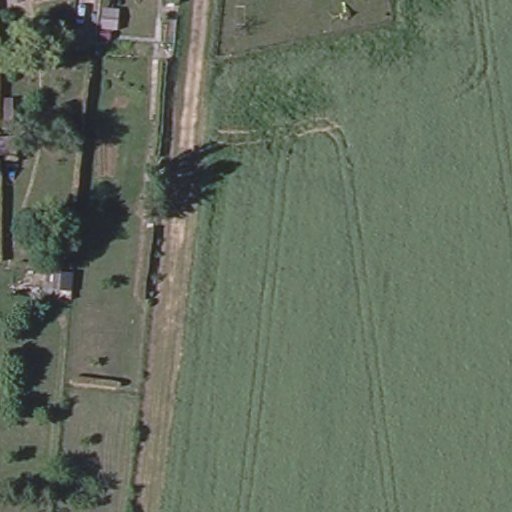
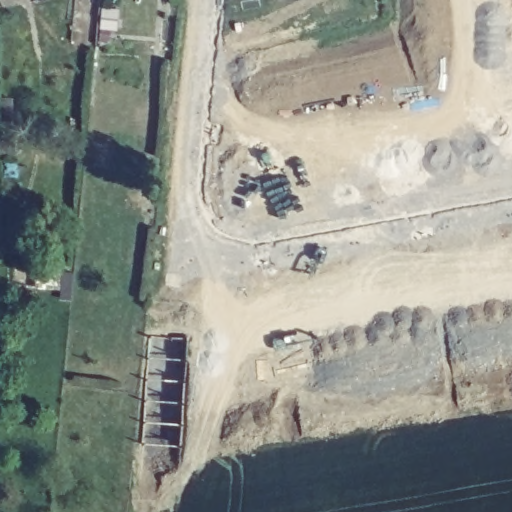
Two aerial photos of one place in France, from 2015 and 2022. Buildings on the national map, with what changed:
unchanged [(177,17),(164,16),(165,3),(177,4),(177,17)]

